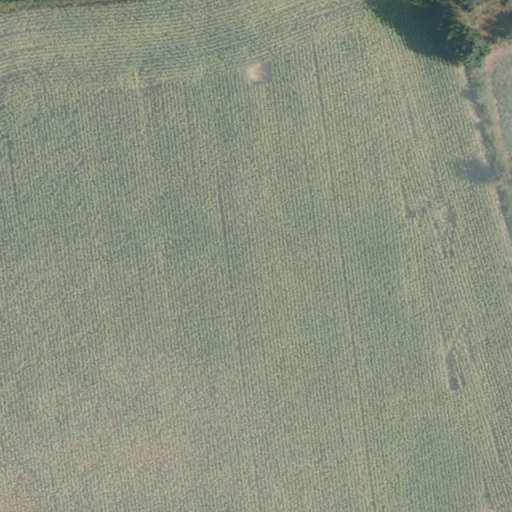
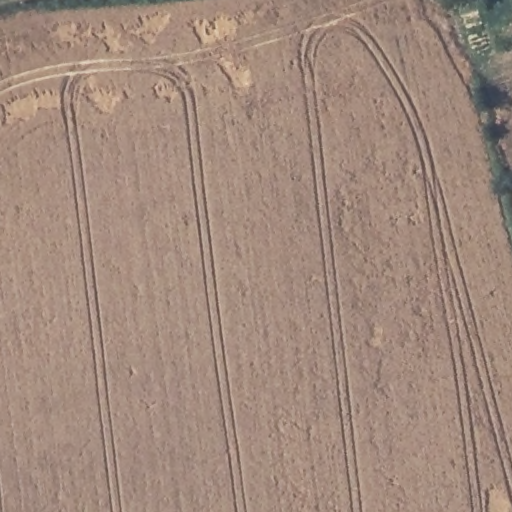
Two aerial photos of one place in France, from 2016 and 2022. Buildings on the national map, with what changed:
[]

